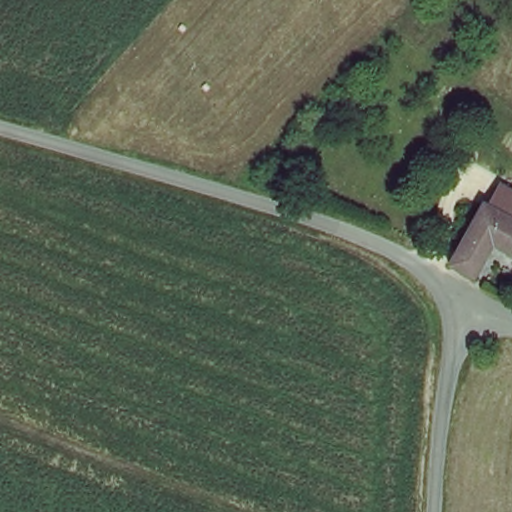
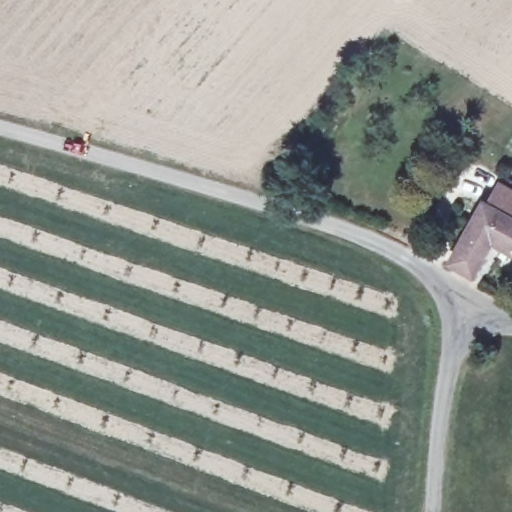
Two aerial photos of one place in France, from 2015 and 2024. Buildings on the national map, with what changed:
unchanged [(489,248),(472,284),(449,272),(480,206),(485,209),(496,183),(512,191),(512,259),(489,248)]

